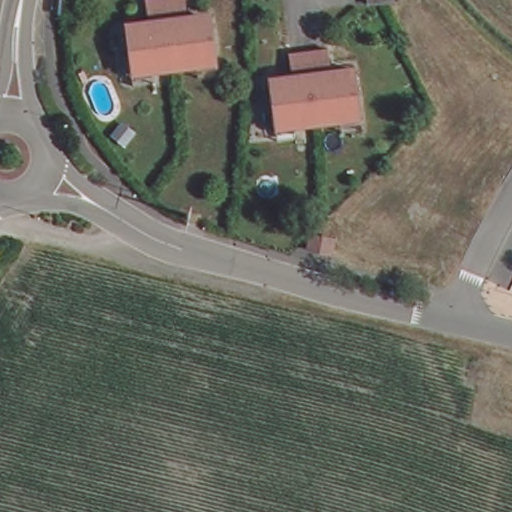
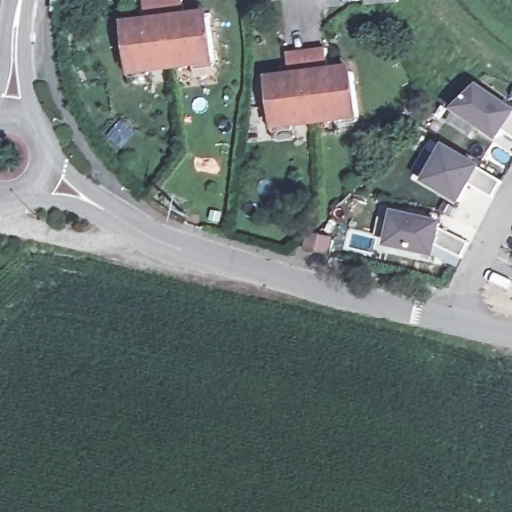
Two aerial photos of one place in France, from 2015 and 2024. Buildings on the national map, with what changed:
unchanged [(128,87),(127,70),(136,69),(133,25),(147,24),(146,14),(156,13),(155,0),(200,0),(201,12),(207,11),(208,18),(220,17),(224,64),(231,63),(232,80),(205,82),(204,66),(203,58),(183,60),(165,61),(166,67),(152,67),(153,86),(128,87)]
unchanged [(398,1),(365,3),(364,0),(398,0),(398,1)]
unchanged [(270,129),(269,114),(276,113),(274,73),(289,72),(288,60),(295,60),(294,42),(316,40),(336,39),(338,55),(347,55),(348,64),(359,62),(362,105),(370,104),(372,125),(342,127),(341,106),(340,101),(320,102),(300,103),(301,111),(293,112),(294,127),(270,129)]
new [(497,142),(475,127),(468,136),(449,122),(456,114),(452,111),(478,85),(512,108),(512,136),(505,131),(497,142)]
new [(445,146),(483,167),(481,171),(501,182),(491,199),(471,186),(460,204),(424,184),(445,146)]
new [(386,247),(393,211),(445,221),(443,229),(470,244),(462,258),(438,245),(435,257),(386,247)]

